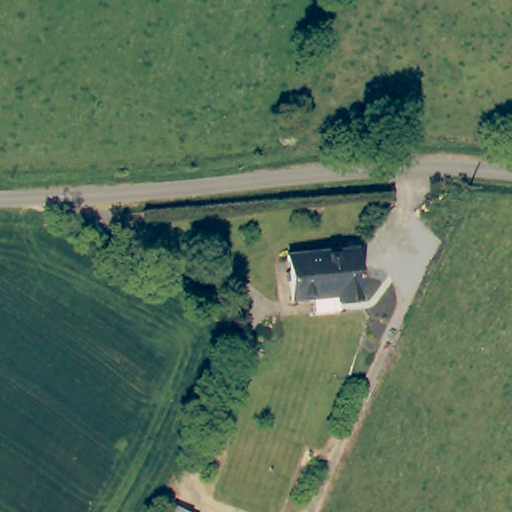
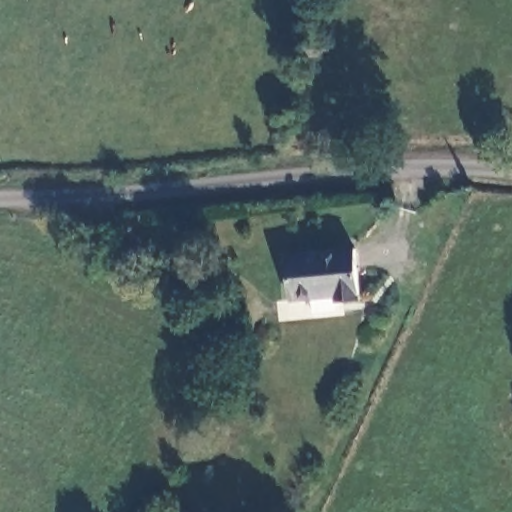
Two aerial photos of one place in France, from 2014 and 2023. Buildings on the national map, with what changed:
unchanged [(342,302),(342,295),(287,298),(287,255),(365,251),(364,300),(342,302)]

